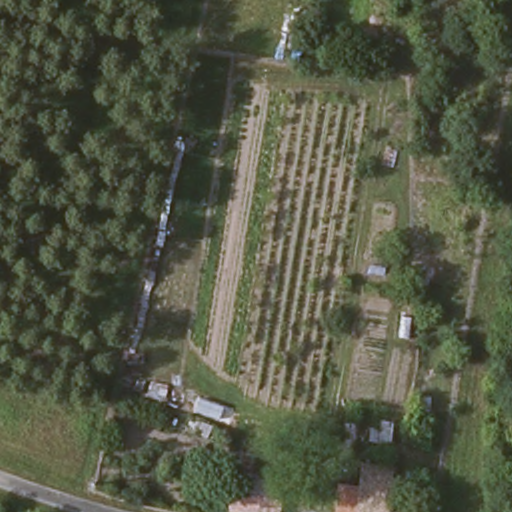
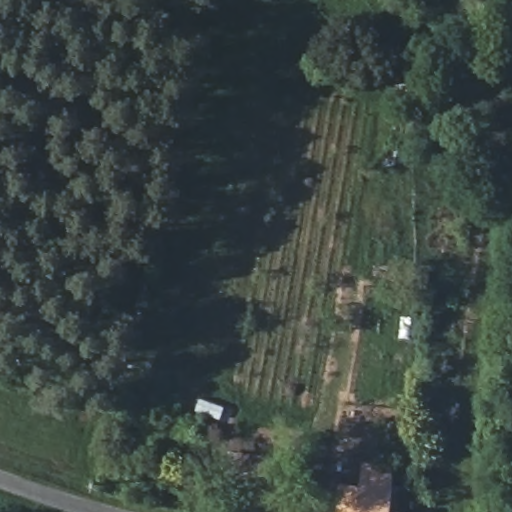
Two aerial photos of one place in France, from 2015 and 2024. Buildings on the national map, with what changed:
unchanged [(372,447),(374,436),(382,437),(384,427),(396,429),(392,449),(372,447)]
unchanged [(272,466),(280,468),(271,512),(261,512),(236,507),(243,471),(245,455),(265,458),(272,460),(272,466)]
unchanged [(345,486),(360,487),(363,462),(396,467),(391,512),(341,512),(345,486)]

